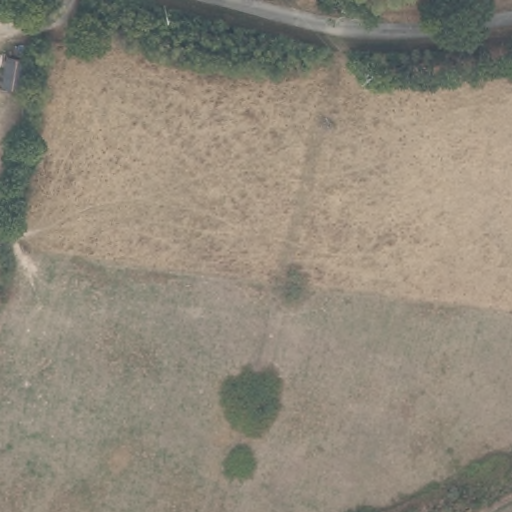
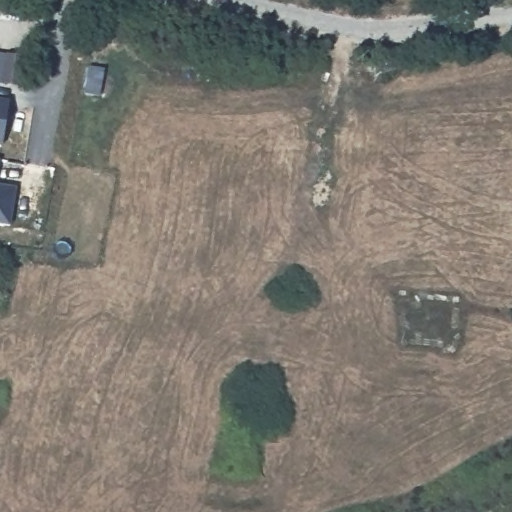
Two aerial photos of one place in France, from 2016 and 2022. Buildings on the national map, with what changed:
new [(9,105),(2,145),(0,144),(0,103),(9,105)]
new [(16,187),(10,225),(0,223),(0,185),(16,187)]

